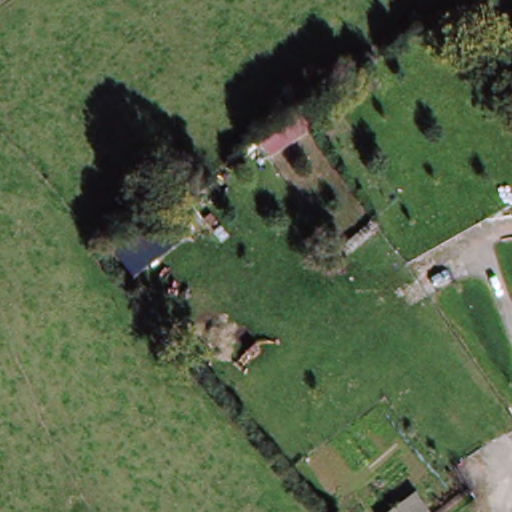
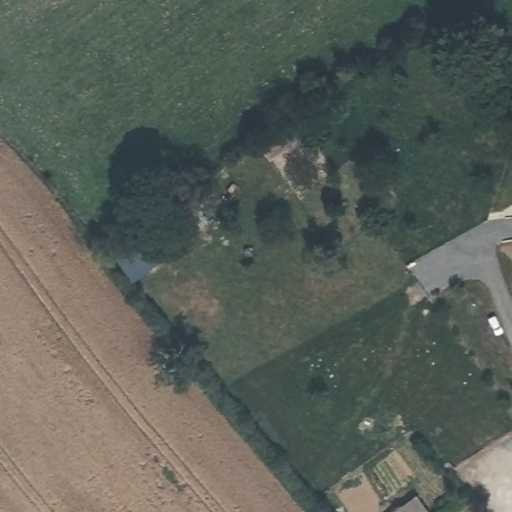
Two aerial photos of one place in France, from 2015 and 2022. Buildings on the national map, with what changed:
unchanged [(400,512),(413,502),(422,512),(400,512)]

